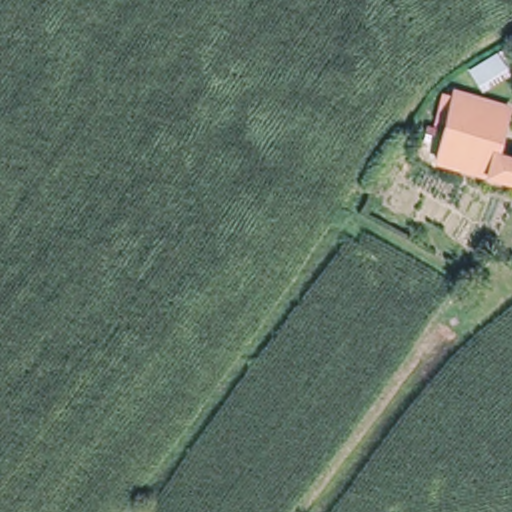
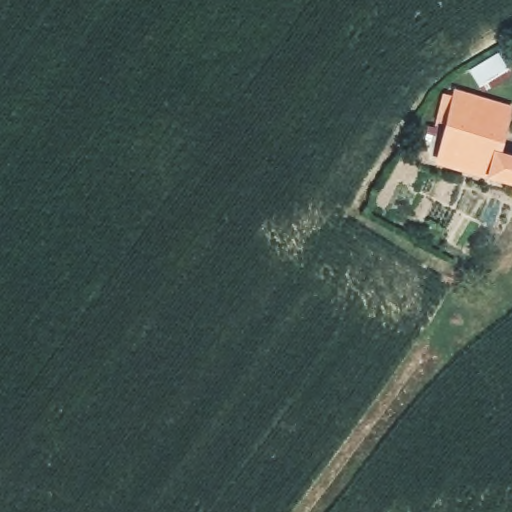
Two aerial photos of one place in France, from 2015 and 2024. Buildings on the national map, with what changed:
unchanged [(512,68),(512,74),(485,92),(470,70),(501,50),(512,68)]
unchanged [(450,122),(441,122),(444,96),(455,99),(458,89),(510,103),(503,150),(512,153),(512,179),(441,162),(450,122)]

